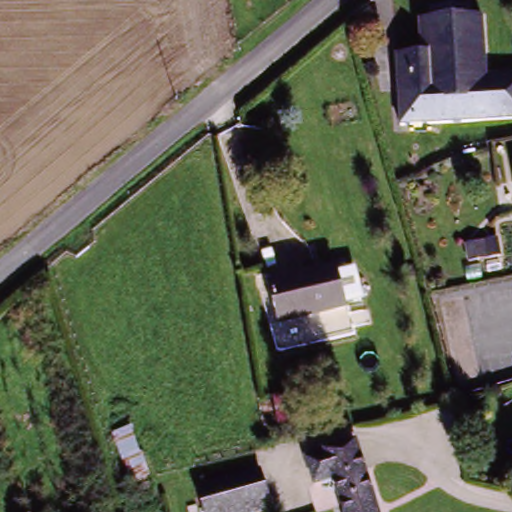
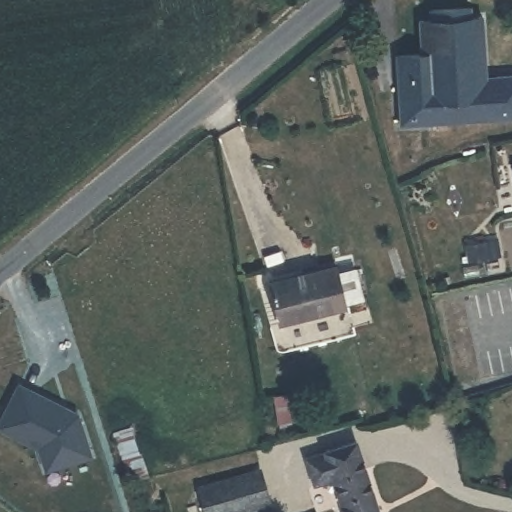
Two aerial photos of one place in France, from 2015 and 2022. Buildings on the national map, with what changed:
unchanged [(402,126),(398,60),(423,58),(420,26),(430,25),(430,14),(469,11),(472,24),(483,22),(488,79),(500,77),(495,121),(402,126)]
unchanged [(500,77),(512,77),(512,121),(495,121),(500,77)]
unchanged [(512,171),(510,162),(512,162),(512,171)]
unchanged [(502,236),(505,251),(473,256),(471,240),(502,236)]
unchanged [(282,312),(275,277),(340,262),(349,302),(314,311),(283,320),(282,312)]
new [(45,470),(38,446),(0,426),(0,423),(20,385),(77,414),(92,455),(45,470)]
new [(130,482),(112,431),(132,424),(151,475),(130,482)]
unchanged [(342,512),(331,480),(312,486),(304,461),(323,454),(356,442),(378,512),(342,512)]
unchanged [(210,512),(208,507),(202,482),(261,465),(268,490),(271,499),(220,512),(210,512)]

